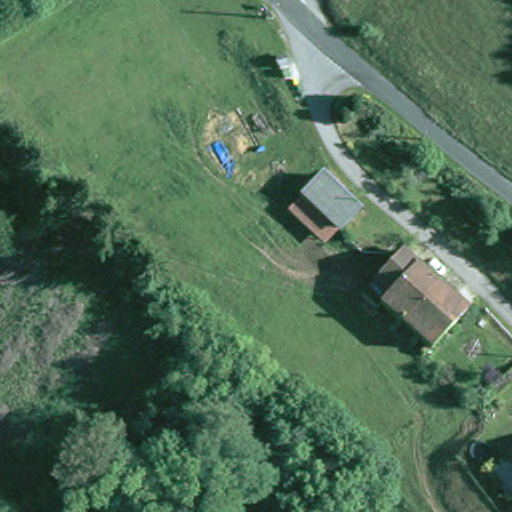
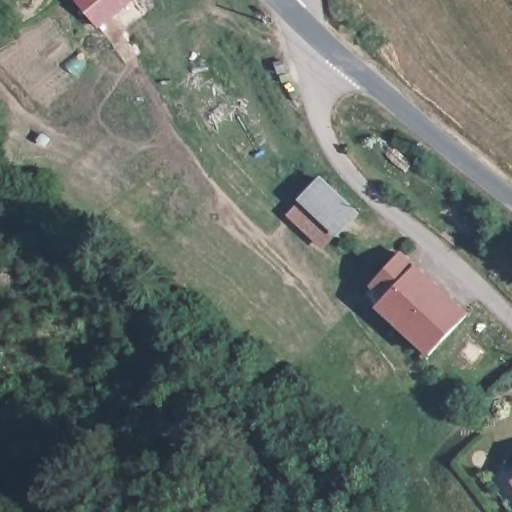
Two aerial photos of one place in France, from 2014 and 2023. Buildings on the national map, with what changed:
new [(80,0),(131,0),(100,26),(80,0)]
unchanged [(317,175),(353,208),(332,232),(296,199),(317,175)]
unchanged [(360,293),(400,250),(461,310),(425,348),(378,303),(375,307),(360,293)]

